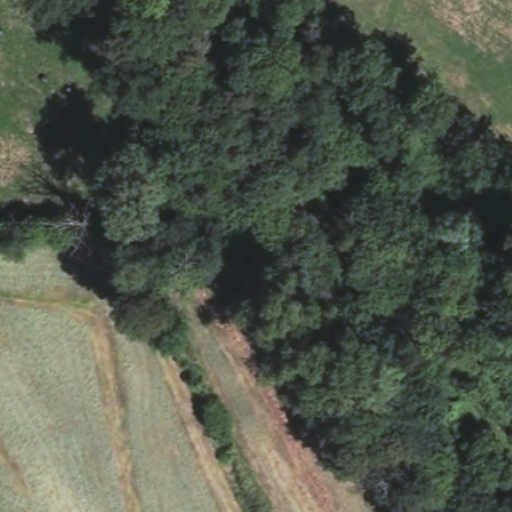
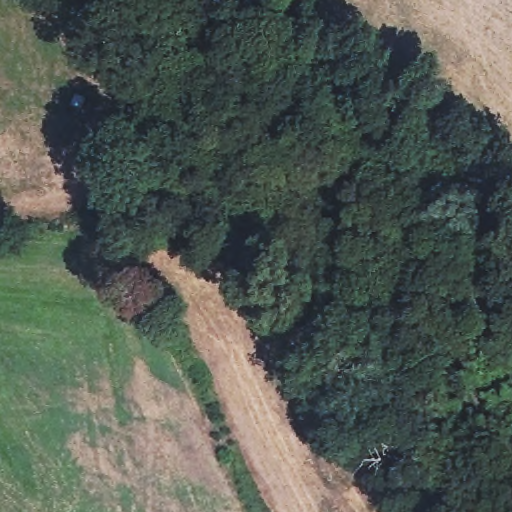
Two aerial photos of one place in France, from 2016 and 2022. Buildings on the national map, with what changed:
[]

